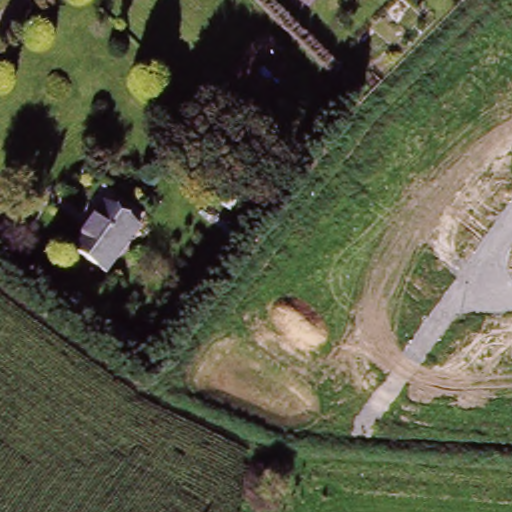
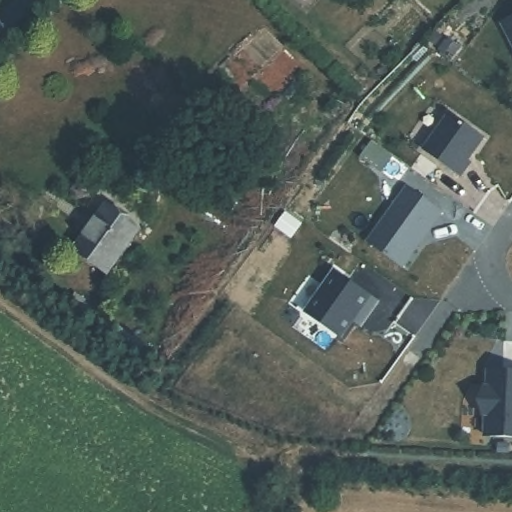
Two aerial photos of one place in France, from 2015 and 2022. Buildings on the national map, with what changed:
new [(512,44),(503,29),(512,23),(512,44)]
new [(447,117),(483,140),(468,160),(471,164),(462,179),(423,153),(447,117)]
new [(405,189),(441,212),(404,269),(368,245),(405,189)]
unchanged [(145,222),(117,264),(84,241),(112,200),(145,222)]
new [(356,326),(345,343),(310,318),(337,277),(381,306),(371,321),(364,332),(356,326)]
new [(490,377),(512,378),(512,443),(489,442),(490,421),(487,421),(481,407),(487,392),(490,393),(490,377)]

